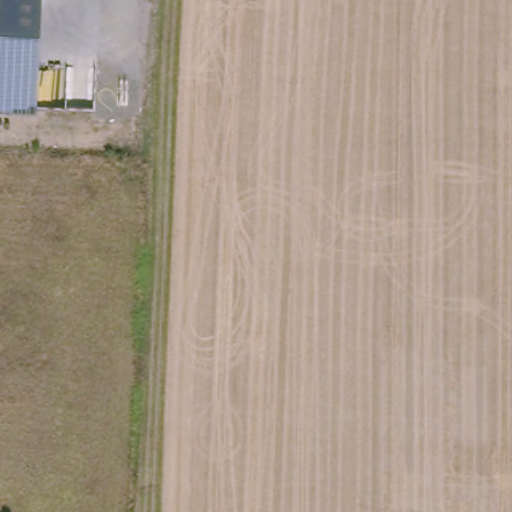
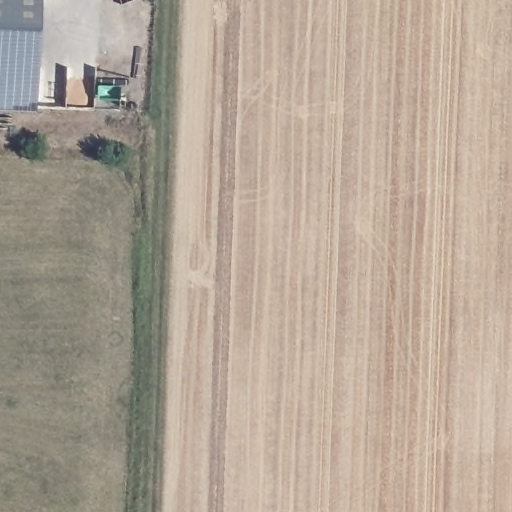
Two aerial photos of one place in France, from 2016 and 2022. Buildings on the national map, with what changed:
unchanged [(44,0),(39,113),(0,111),(0,0),(44,0)]

